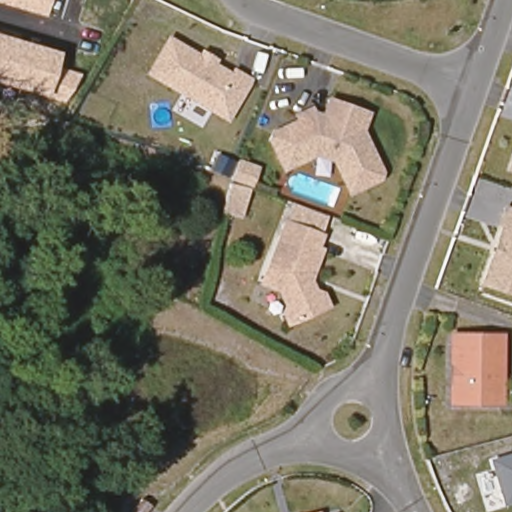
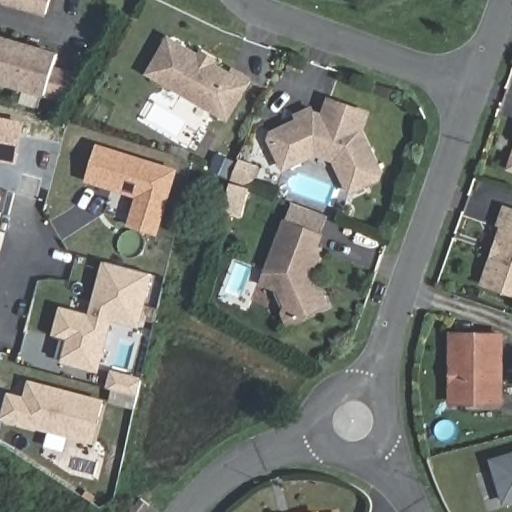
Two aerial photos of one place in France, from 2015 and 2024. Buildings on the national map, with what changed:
unchanged [(0,3),(0,0),(51,0),(47,16),(0,3)]
unchanged [(82,73),(64,101),(45,94),(0,81),(0,33),(60,51),(55,67),(82,73)]
unchanged [(167,35),(198,52),(201,49),(219,59),(217,62),(231,71),(234,66),(254,79),(229,122),(144,75),(167,35)]
unchanged [(267,142),(269,135),(310,115),(319,118),(325,101),(363,115),(357,131),(377,173),(375,179),(347,193),(337,172),(342,170),(336,156),(312,149),(299,155),(302,160),(281,170),(267,142)]
new [(25,121),(16,165),(0,162),(0,117),(25,121)]
new [(85,181),(97,143),(177,169),(157,236),(125,225),(135,197),(85,181)]
unchanged [(259,165),(242,217),(221,212),(231,178),(211,171),(217,151),(259,165)]
unchanged [(512,152),(512,169),(507,167),(512,152)]
unchanged [(491,255),(496,254),(497,247),(496,242),(502,225),(497,224),(502,208),(512,211),(512,293),(482,283),(491,255)]
unchanged [(317,236),(312,250),(317,252),(306,283),(310,292),(319,295),(325,307),(287,325),(282,315),(286,302),(282,293),(260,285),(282,224),(317,236)]
new [(112,321),(99,373),(57,361),(63,338),(54,335),(59,305),(88,313),(102,261),(119,266),(119,263),(145,272),(149,290),(139,328),(112,321)]
unchanged [(499,398),(451,398),(451,330),(499,330),(499,398)]
new [(142,376),(134,406),(107,400),(115,370),(142,376)]
new [(104,400),(95,444),(0,420),(7,392),(22,395),(27,379),(104,400)]
unchanged [(512,502),(503,505),(487,459),(512,451),(512,502)]
unchanged [(140,496),(151,502),(143,512),(130,512),(140,496)]

